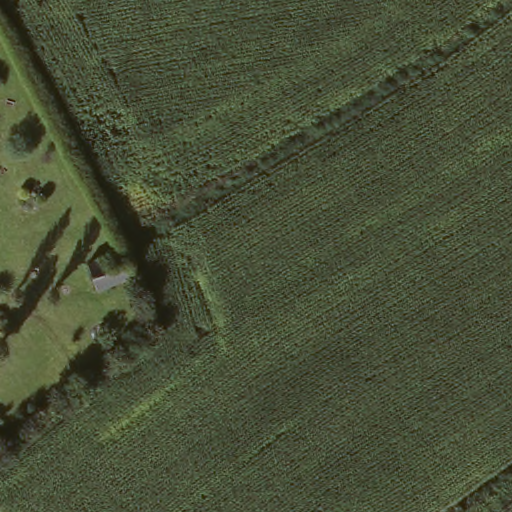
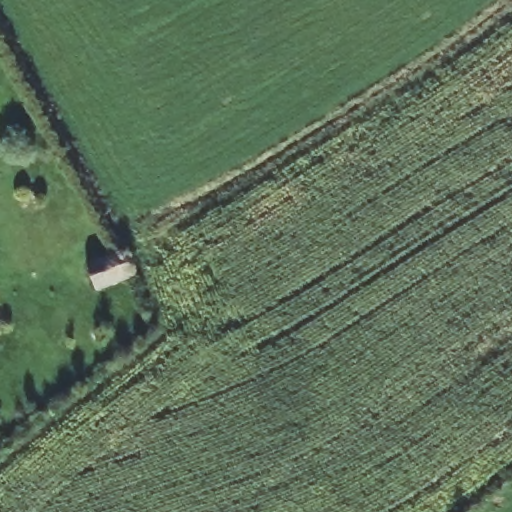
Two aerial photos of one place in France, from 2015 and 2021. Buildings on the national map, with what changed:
unchanged [(127,250),(136,275),(97,287),(89,262),(127,250)]

